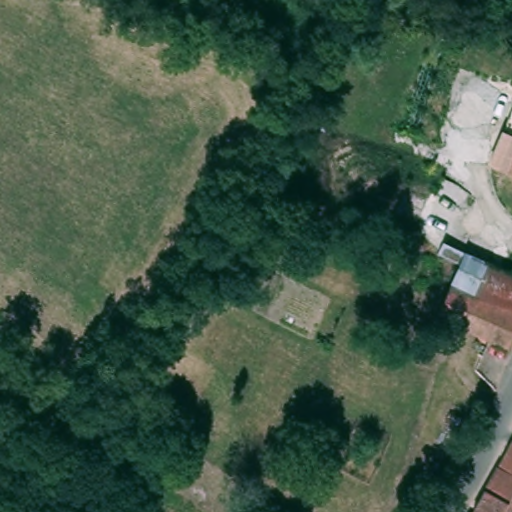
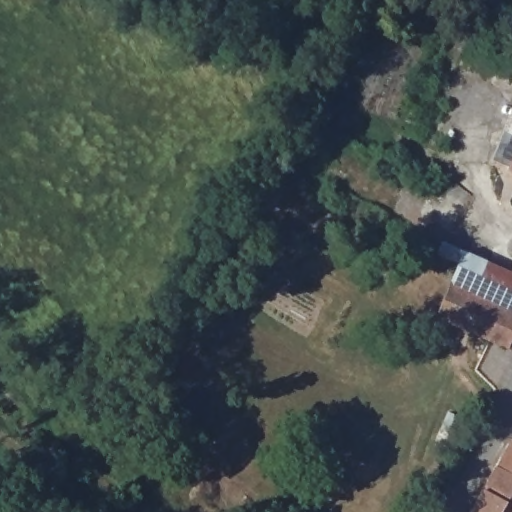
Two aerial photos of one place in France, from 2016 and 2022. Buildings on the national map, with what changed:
unchanged [(512,132),(512,168),(499,163),(512,132)]
unchanged [(473,291),(488,261),(512,274),(512,312),(473,291)]
unchanged [(445,316),(436,311),(451,280),(460,285),(473,291),(512,312),(512,335),(506,347),(445,316)]
unchanged [(512,442),(512,507),(480,488),(504,438),(512,442)]
unchanged [(469,512),(480,488),(512,507),(512,512),(469,512)]

